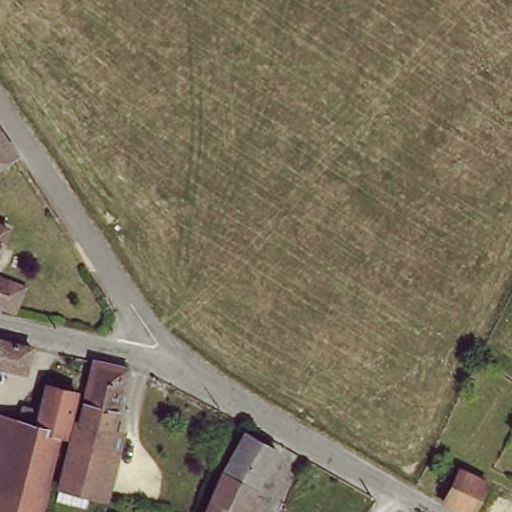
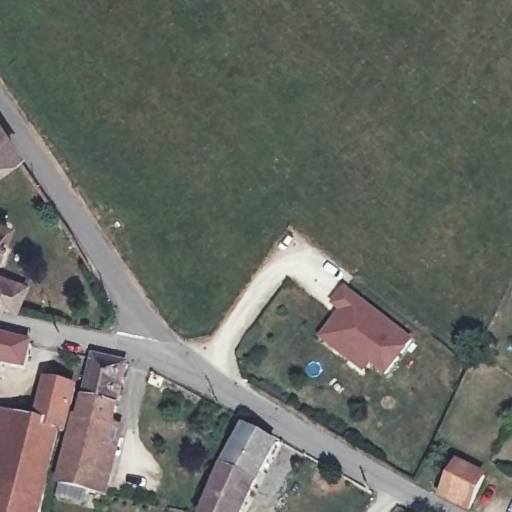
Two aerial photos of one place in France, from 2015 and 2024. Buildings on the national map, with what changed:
unchanged [(0,159),(0,135),(12,152),(0,159)]
unchanged [(8,221),(0,239),(0,217),(8,221)]
unchanged [(19,287),(13,310),(0,306),(0,281),(19,287)]
new [(348,367),(320,346),(341,319),(333,312),(344,297),(411,349),(384,382),(369,370),(363,378),(348,367)]
unchanged [(0,366),(0,341),(30,348),(24,369),(0,366)]
unchanged [(87,500),(85,509),(55,501),(59,485),(72,435),(76,423),(82,424),(98,360),(126,367),(97,495),(97,500),(87,500)]
unchanged [(76,390),(64,433),(57,431),(42,485),(47,487),(40,512),(0,512),(0,487),(19,421),(38,423),(51,383),(76,390)]
unchanged [(244,441),(272,455),(246,505),(244,512),(209,512),(244,441)]
unchanged [(442,500),(455,472),(460,475),(462,470),(482,478),(480,485),(468,512),(442,500)]

